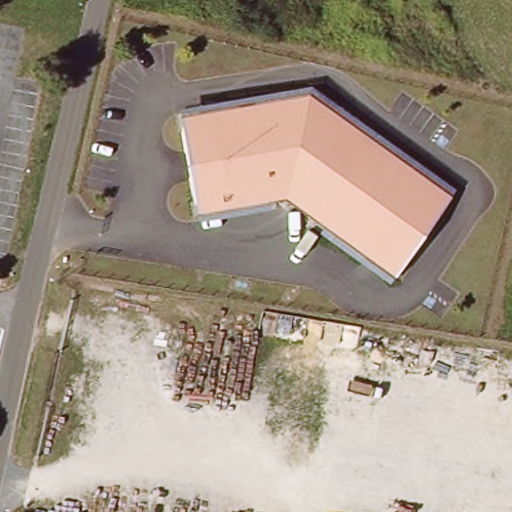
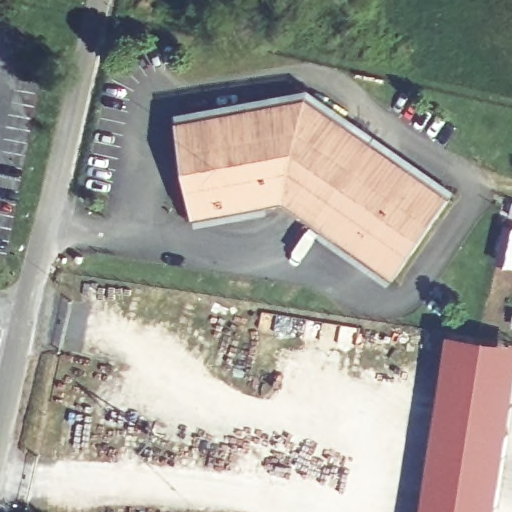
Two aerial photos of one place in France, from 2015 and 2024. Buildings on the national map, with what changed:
unchanged [(271,199),(198,212),(183,126),(207,122),(205,113),(311,95),(351,124),(372,139),(453,196),(397,274),(367,253),(327,224),(287,196),(271,199)]
new [(512,342),(512,417),(497,512),(423,512),(451,331),(512,342)]

